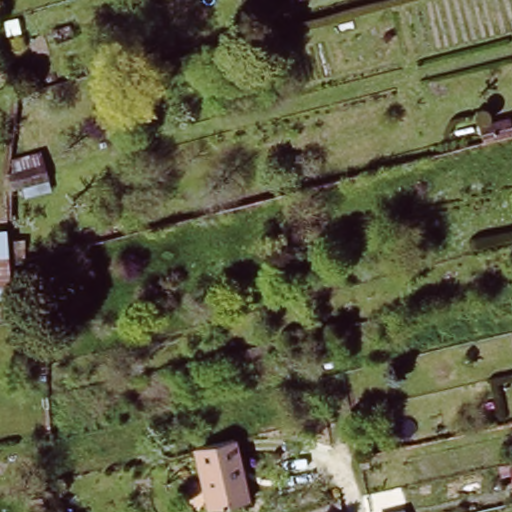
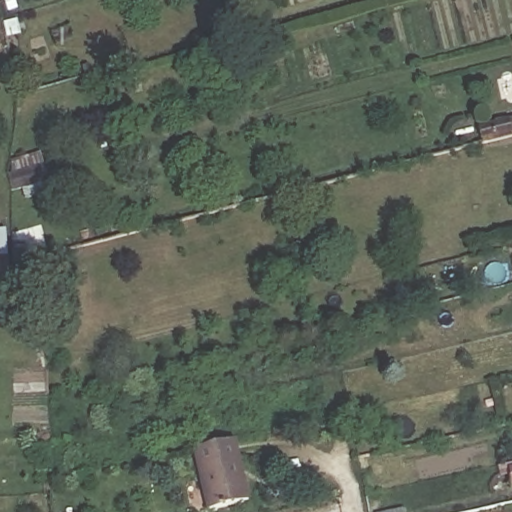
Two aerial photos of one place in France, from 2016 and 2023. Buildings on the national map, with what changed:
unchanged [(3,0),(0,2),(0,0),(3,0)]
unchanged [(5,47),(0,50),(0,32),(5,47)]
unchanged [(512,114),(507,116),(480,127),(477,114),(504,102),(512,99),(512,114)]
unchanged [(20,188),(14,167),(45,160),(66,247),(23,258),(20,188)]
unchanged [(332,320),(338,346),(323,350),(317,324),(332,320)]
unchanged [(216,507),(203,447),(240,438),(247,466),(249,476),(255,498),(216,507)]
unchanged [(404,486),(410,512),(381,512),(376,492),(404,486)]

